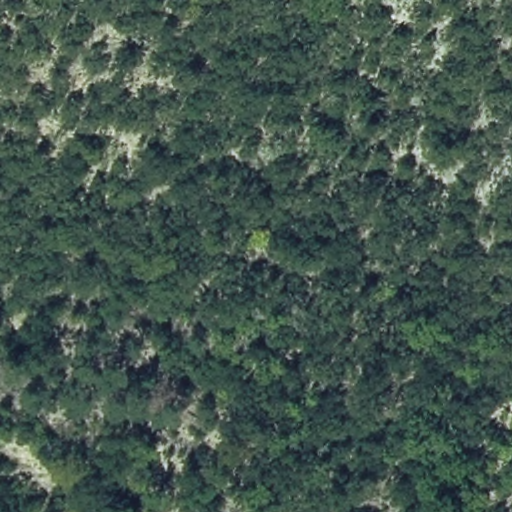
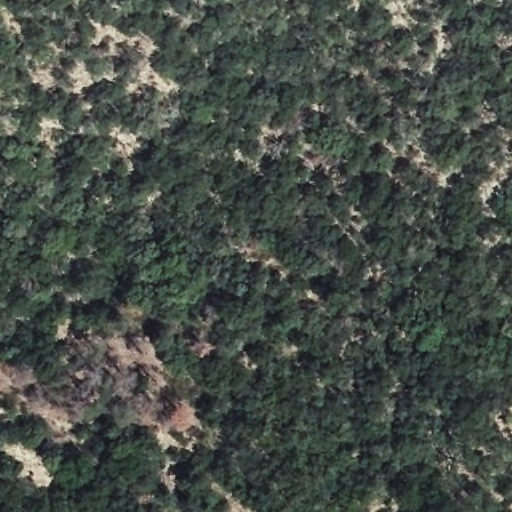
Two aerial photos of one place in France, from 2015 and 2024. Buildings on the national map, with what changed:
[]

